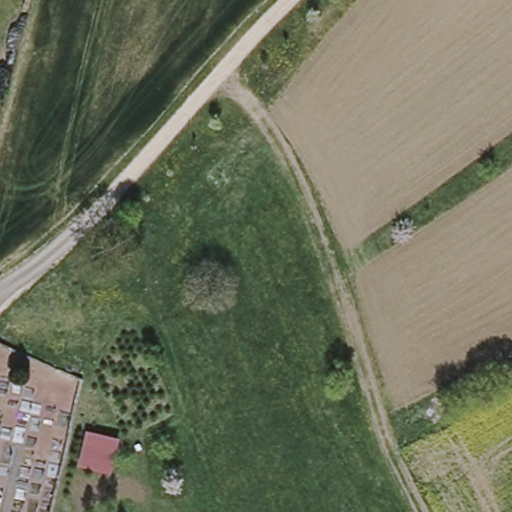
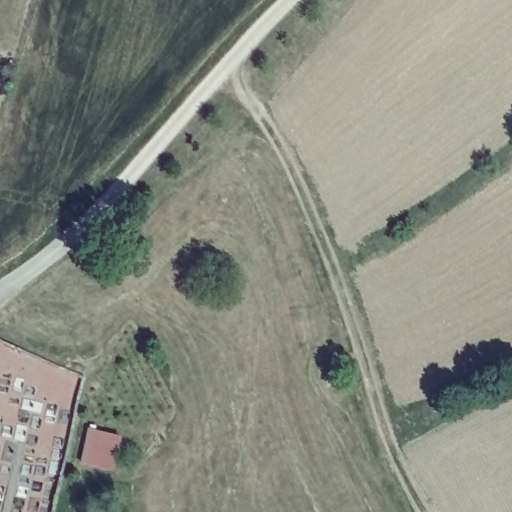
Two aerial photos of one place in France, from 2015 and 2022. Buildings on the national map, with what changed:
unchanged [(81,463),(89,427),(121,432),(114,468),(81,463)]

